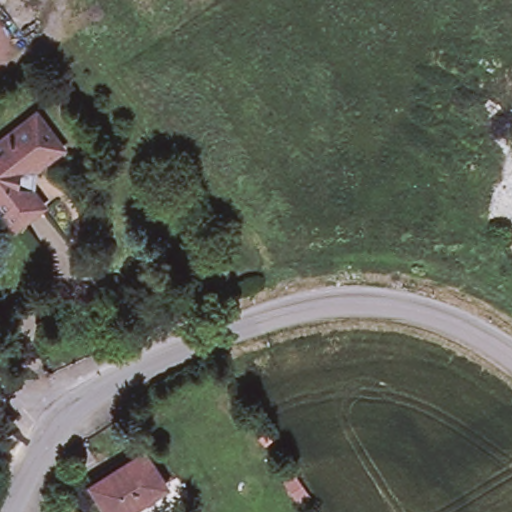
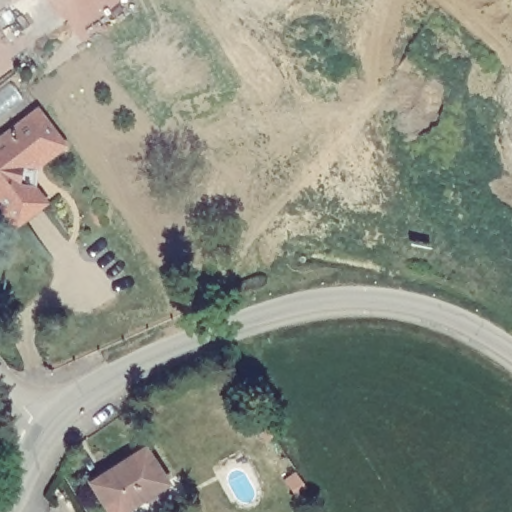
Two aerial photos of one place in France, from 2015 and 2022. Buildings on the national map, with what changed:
unchanged [(15,170),(37,199),(11,217),(0,203),(0,135),(31,111),(55,140),(15,170)]
unchanged [(122,512),(110,512),(93,484),(144,453),(164,485),(122,512)]

